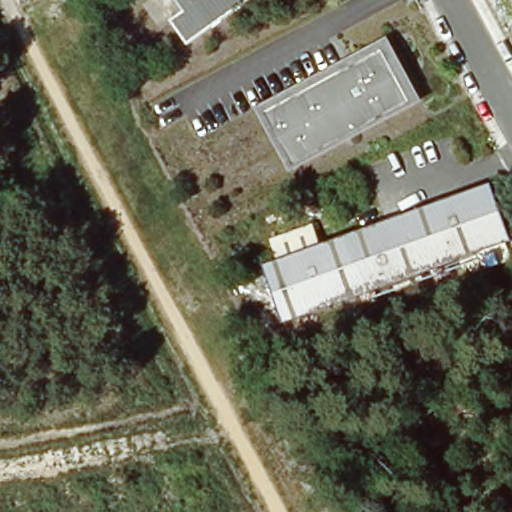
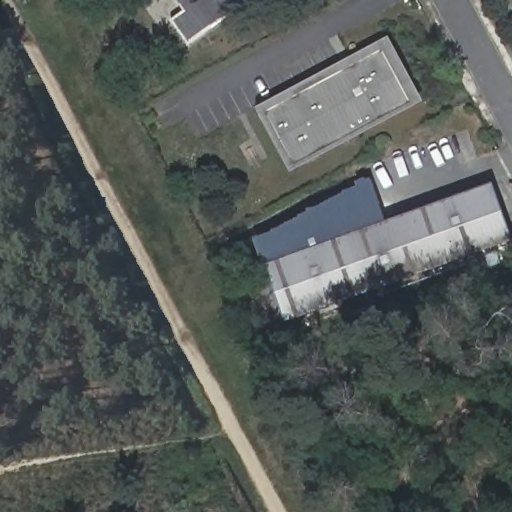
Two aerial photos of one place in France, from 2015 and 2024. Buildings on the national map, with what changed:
unchanged [(169,22),(181,13),(171,0),(247,0),(186,45),(169,22)]
unchanged [(380,41),(411,95),(296,164),(264,110),(380,41)]
new [(370,174),(386,221),(263,265),(255,238),(370,174)]
unchanged [(286,323),(263,265),(491,184),(511,240),(286,323)]

